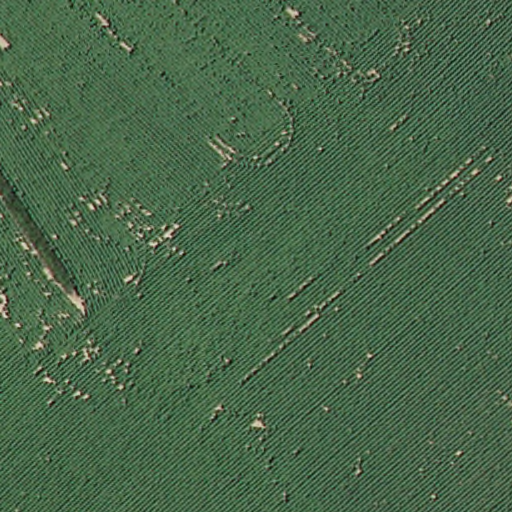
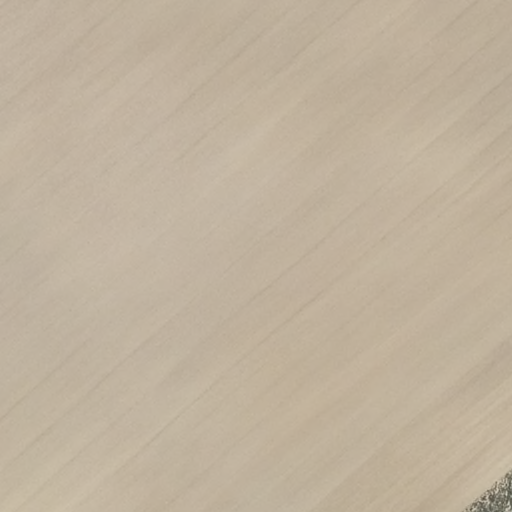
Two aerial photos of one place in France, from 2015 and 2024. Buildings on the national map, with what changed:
[]

